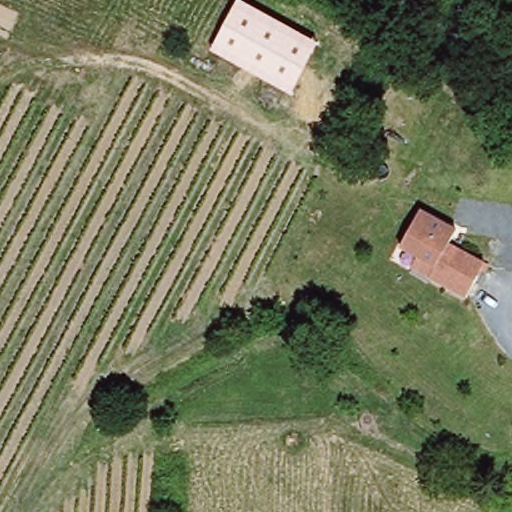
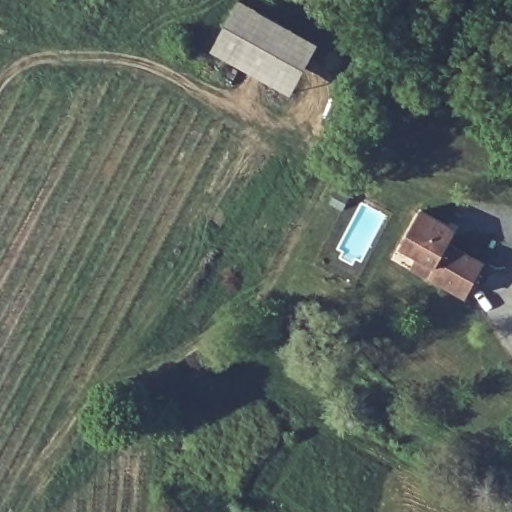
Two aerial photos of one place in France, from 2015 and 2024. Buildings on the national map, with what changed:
unchanged [(320,43),(291,97),(211,51),(239,1),(320,43)]
unchanged [(401,245),(421,209),(451,225),(458,229),(454,236),(450,242),(485,263),(466,297),(430,276),(411,266),(417,255),(401,245)]

